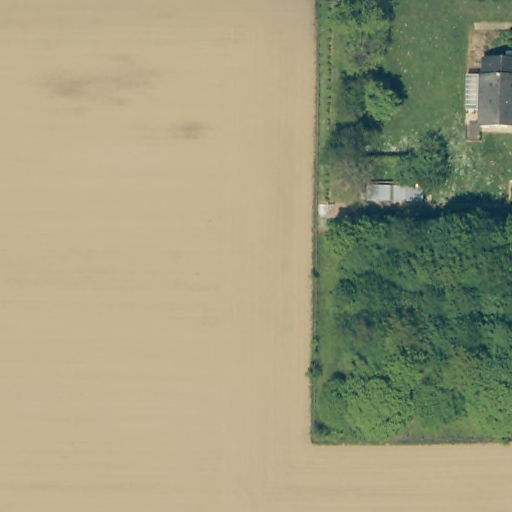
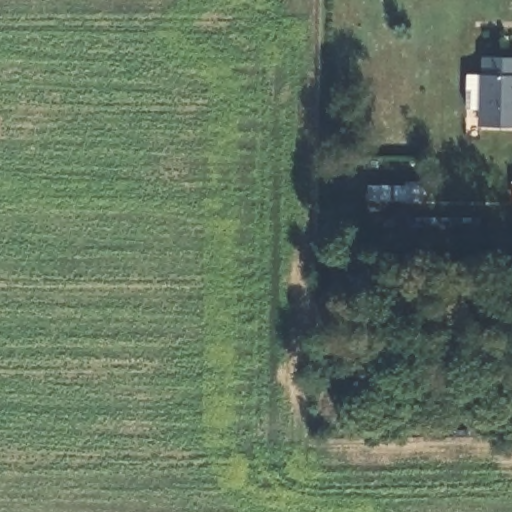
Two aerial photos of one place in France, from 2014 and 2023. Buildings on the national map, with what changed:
unchanged [(471,75),(487,75),(488,58),(512,57),(512,127),(485,126),(485,109),(470,109),(471,75)]
unchanged [(379,199),(380,186),(420,187),(420,200),(379,199)]

